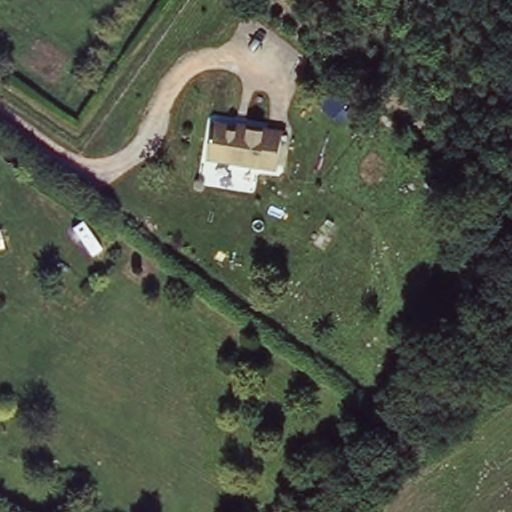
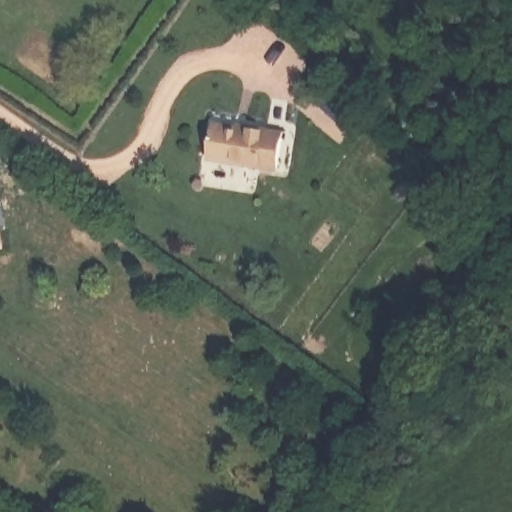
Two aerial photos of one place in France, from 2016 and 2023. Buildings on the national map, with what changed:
unchanged [(276,171),(206,161),(213,121),(285,132),(276,171)]
unchanged [(3,251),(0,252),(0,239),(3,251)]

